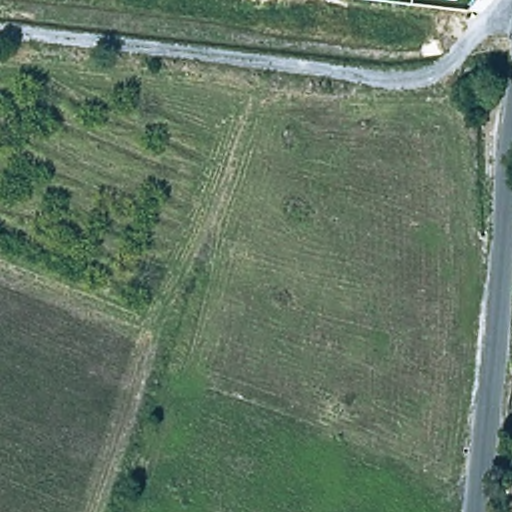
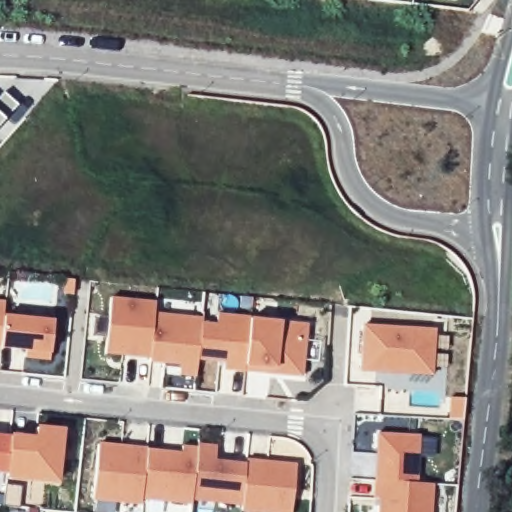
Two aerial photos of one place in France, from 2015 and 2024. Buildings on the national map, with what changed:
new [(2,120),(0,122),(0,95),(2,93),(16,105),(2,120)]
new [(105,353),(110,297),(152,302),(152,313),(147,358),(105,353)]
new [(3,302),(0,333),(0,301),(3,302)]
new [(177,376),(178,366),(147,363),(147,358),(152,313),(200,317),(200,323),(197,361),(195,377),(177,376)]
new [(50,354),(49,362),(22,359),(24,352),(0,348),(0,333),(2,314),(54,320),(50,354)]
new [(220,369),(222,363),(197,361),(200,323),(215,324),(216,314),(248,317),(248,320),(243,368),(243,372),(220,369)]
new [(243,372),(243,368),(248,320),(248,317),(306,323),(300,378),(243,372)]
new [(362,325),(434,329),(432,374),(360,370),(362,325)]
new [(5,477),(8,437),(35,439),(35,428),(60,430),(55,481),(5,477)]
new [(375,454),(377,434),(383,434),(418,436),(415,483),(374,481),(375,454)]
new [(0,476),(0,436),(8,437),(5,477),(0,476)]
new [(91,501),(96,443),(145,447),(146,450),(141,499),(140,505),(91,501)]
new [(192,501),(197,448),(197,443),(215,445),(214,460),(245,463),(240,506),(192,501)]
new [(192,501),(191,504),(141,499),(146,450),(180,453),(181,446),(197,448),(192,501)]
new [(290,512),(245,512),(240,512),(240,506),(245,463),(245,459),(295,464),(290,512)]
new [(431,512),(377,512),(377,499),(372,499),(372,481),(374,481),(415,483),(432,484),(431,512)]

